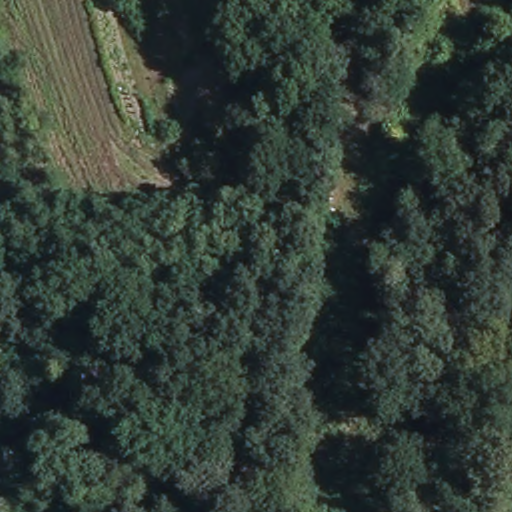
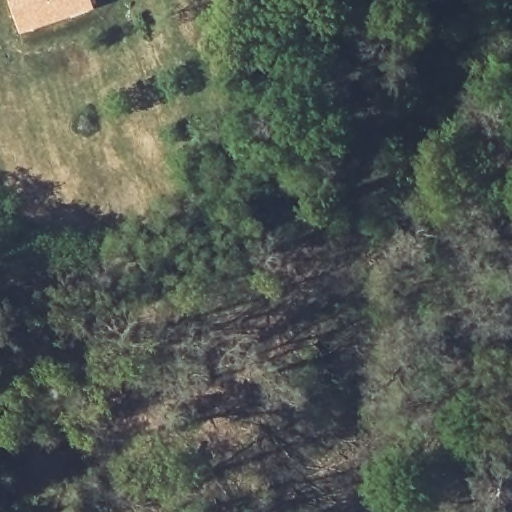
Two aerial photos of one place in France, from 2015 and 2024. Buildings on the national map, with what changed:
new [(95,9),(20,34),(8,0),(91,0),(95,9)]

